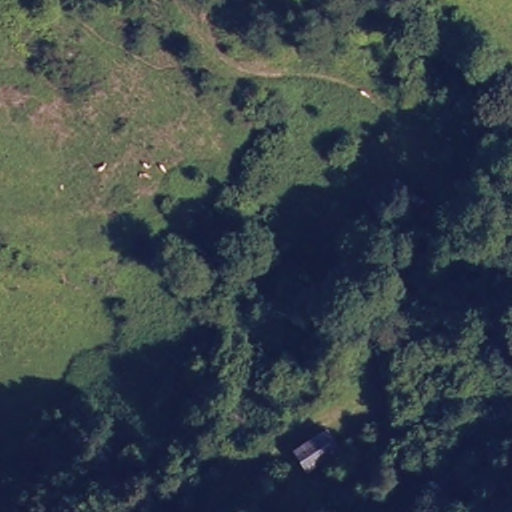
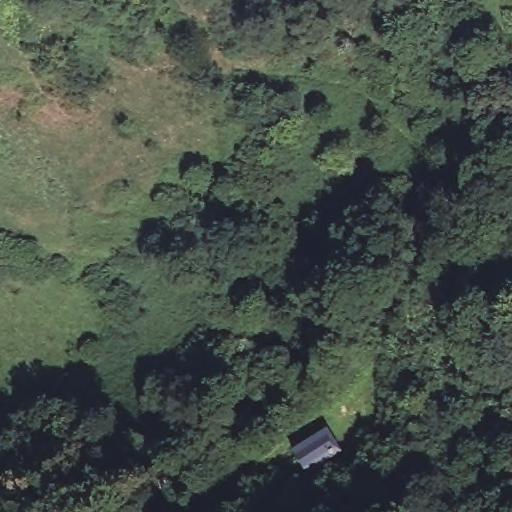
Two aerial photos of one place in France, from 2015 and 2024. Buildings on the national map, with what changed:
unchanged [(467,381),(438,388),(430,352),(460,346),(466,374),(467,381)]
unchanged [(299,460),(293,452),(285,457),(276,442),(286,437),(320,421),(328,431),(336,428),(343,438),(299,460)]

